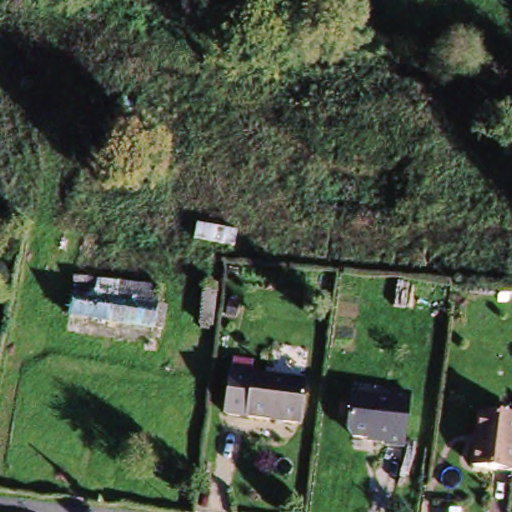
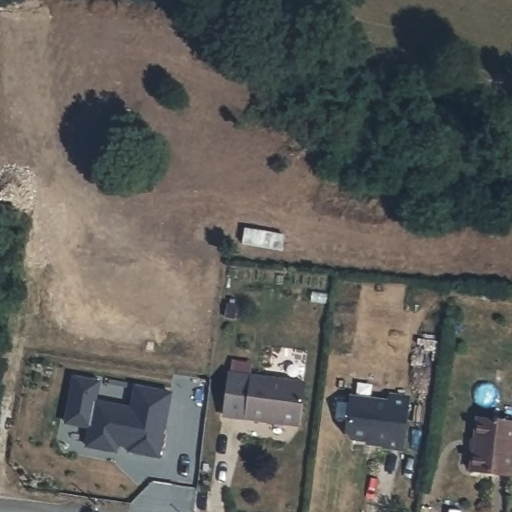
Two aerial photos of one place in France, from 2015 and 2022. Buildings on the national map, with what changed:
unchanged [(234,234),(231,254),(190,245),(194,225),(234,234)]
unchanged [(155,322),(147,320),(144,333),(65,315),(71,288),(90,292),(94,281),(112,287),(109,294),(159,306),(155,322)]
unchanged [(203,336),(208,297),(218,299),(217,337),(203,336)]
unchanged [(246,412),(223,409),(228,373),(251,376),(303,383),(298,418),(246,412)]
new [(79,385),(104,390),(100,410),(139,413),(143,391),(176,398),(164,461),(136,455),(137,448),(123,445),(121,455),(91,451),(95,433),(71,428),(79,385)]
unchanged [(389,403),(391,390),(408,391),(401,450),(381,446),(381,442),(351,438),(344,430),(351,396),(389,403)]
unchanged [(468,468),(476,416),(512,423),(512,450),(508,475),(468,468)]

